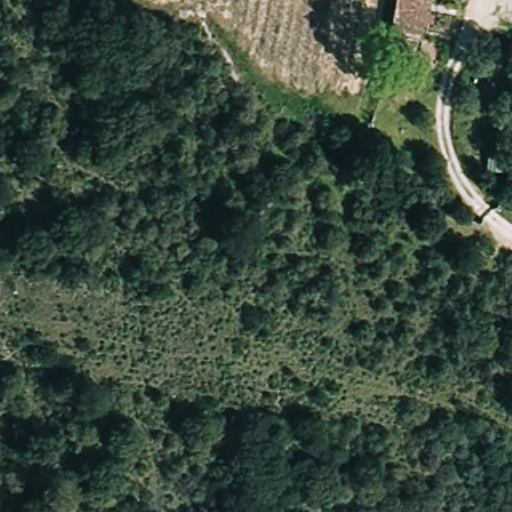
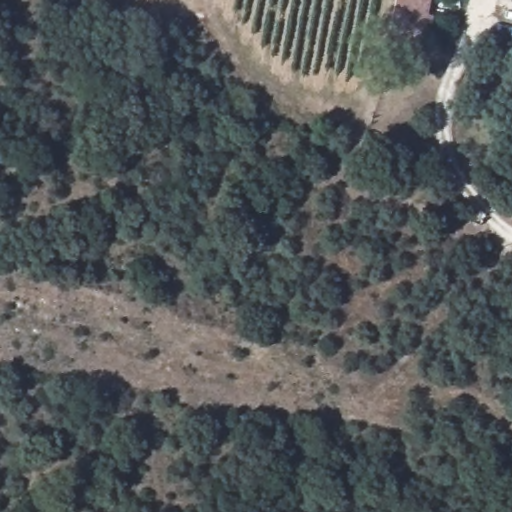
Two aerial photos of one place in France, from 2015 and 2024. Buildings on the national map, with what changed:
unchanged [(424,40),(396,35),(401,0),(430,0),(424,40)]

